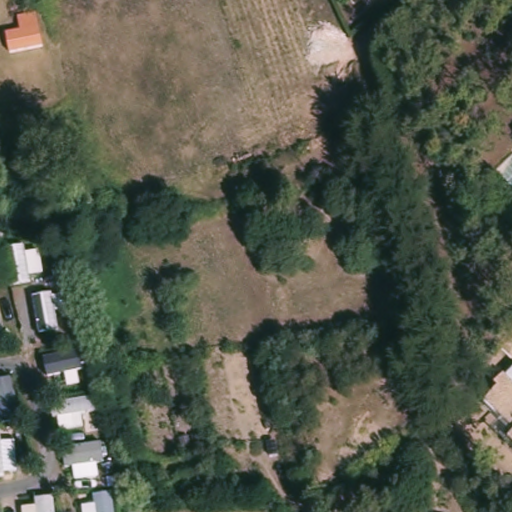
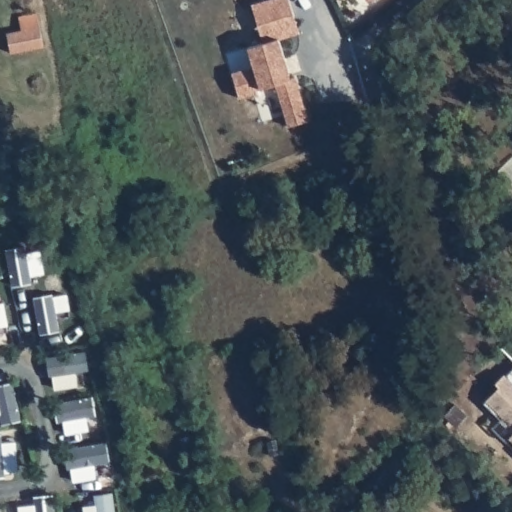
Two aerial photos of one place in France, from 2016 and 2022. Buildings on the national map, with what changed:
new [(244,48),(260,44),(249,6),(268,0),(286,0),(291,16),(297,34),(276,40),(287,79),(292,78),(305,122),(285,128),(272,85),(250,91),(251,94),(236,99),(228,74),(250,67),(244,48)]
unchanged [(370,3),(366,0),(373,0),(370,3)]
unchanged [(4,55),(1,34),(17,33),(15,19),(33,16),(39,50),(4,55)]
unchanged [(496,388),(493,384),(503,372),(507,375),(512,369),(512,426),(485,402),(496,388)]
unchanged [(512,431),(512,443),(506,437),(512,431)]

